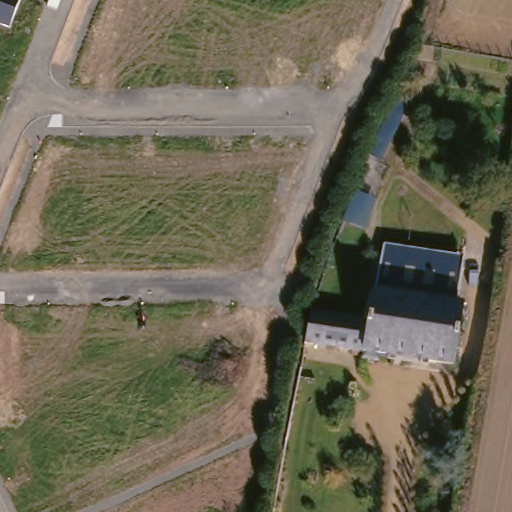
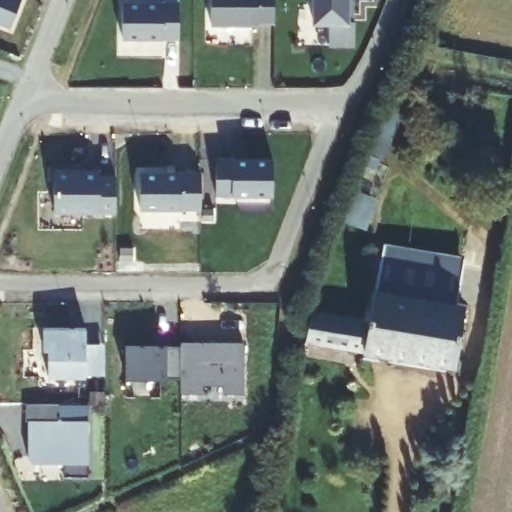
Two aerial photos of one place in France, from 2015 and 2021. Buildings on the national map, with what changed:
unchanged [(0,23),(0,0),(21,0),(11,27),(0,23)]
new [(258,24),(258,27),(211,27),(210,0),(275,0),(275,24),(258,24)]
new [(338,31),(338,9),(320,9),(319,0),(360,0),(360,31),(338,31)]
new [(179,40),(164,39),(164,41),(124,41),(123,2),(165,2),(165,1),(179,1),(179,40)]
unchanged [(369,152),(393,96),(409,103),(386,157),(369,152)]
new [(273,197),(232,197),(232,196),(216,196),(217,157),(231,157),(273,157),(273,197)]
new [(61,160),(121,160),(121,195),(61,195),(61,160)]
new [(146,160),(206,160),(206,195),(146,195),(146,160)]
unchanged [(369,227),(344,221),(353,190),(378,197),(369,227)]
unchanged [(313,343),(318,311),(375,317),(391,247),(462,259),(457,305),(479,309),(468,375),(313,343)]
new [(48,315),(91,315),(91,330),(109,330),(109,361),(91,361),(91,365),(53,365),(53,338),(48,338),(48,315)]
new [(245,393),(224,393),(224,385),(203,385),(203,394),(181,393),(181,378),(166,375),(166,377),(127,378),(126,347),(166,347),(181,348),(180,342),(244,342),(245,393)]
new [(59,420),(89,420),(88,477),(64,477),(64,465),(30,464),(29,421),(25,422),(26,402),(58,402),(59,420)]

